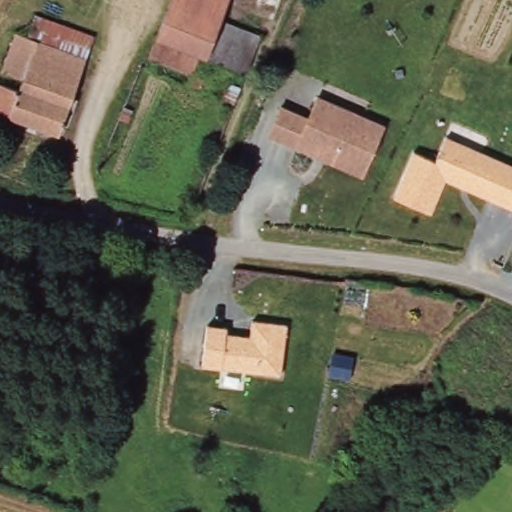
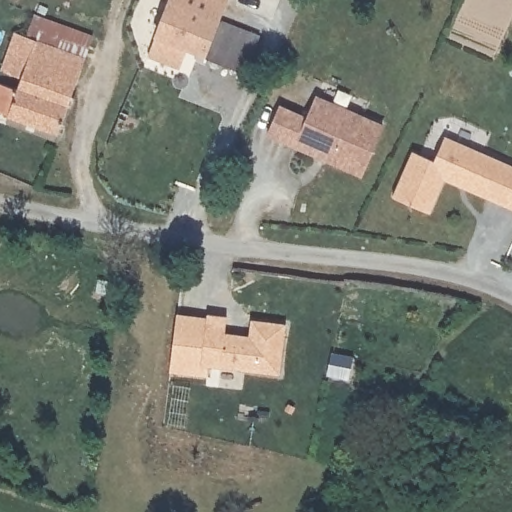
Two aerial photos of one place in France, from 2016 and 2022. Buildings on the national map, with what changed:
unchanged [(210,59),(205,56),(197,73),(153,60),(176,0),(233,0),(210,59)]
unchanged [(87,46),(60,124),(0,102),(0,75),(21,80),(23,66),(7,59),(22,23),(87,46)]
unchanged [(385,129),(362,178),(268,137),(280,110),(306,119),(318,99),(385,129)]
unchanged [(512,213),(445,185),(429,217),(391,199),(410,153),(433,162),(443,140),(512,170),(512,213)]
new [(205,324),(200,366),(207,367),(207,376),(169,372),(176,314),(209,317),(209,324),(205,324)]
unchanged [(226,326),(226,334),(249,337),(251,321),(286,324),(280,376),(200,366),(205,324),(226,326)]

